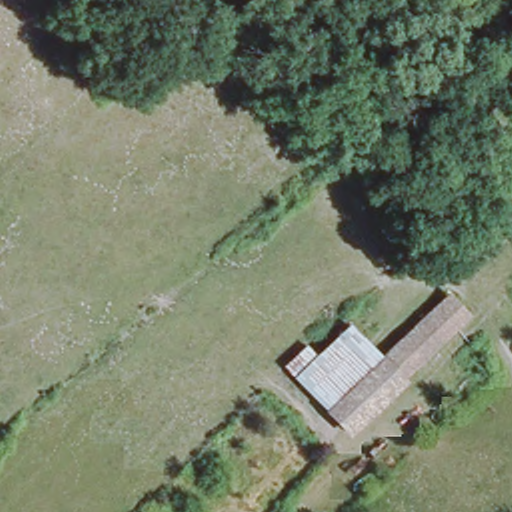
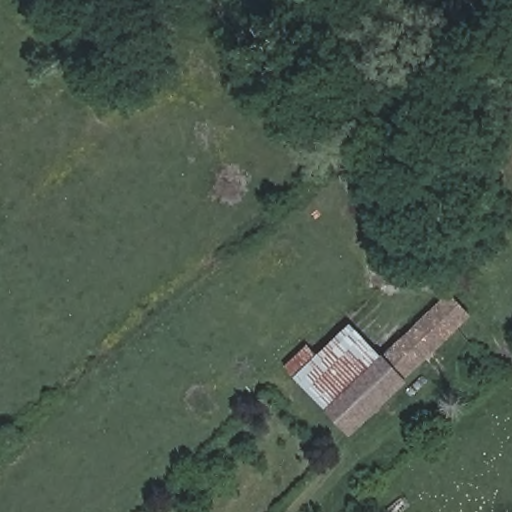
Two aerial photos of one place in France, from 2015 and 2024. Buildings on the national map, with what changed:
unchanged [(455,294),(475,314),(355,428),(334,407),(391,354),(455,294)]
unchanged [(293,363),(314,343),(326,354),(360,322),(391,354),(334,407),(293,363)]

